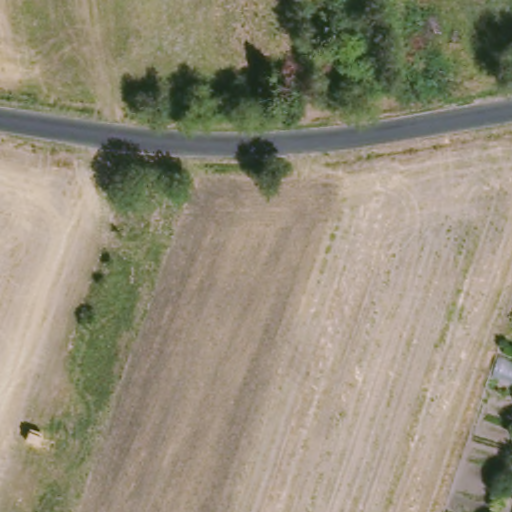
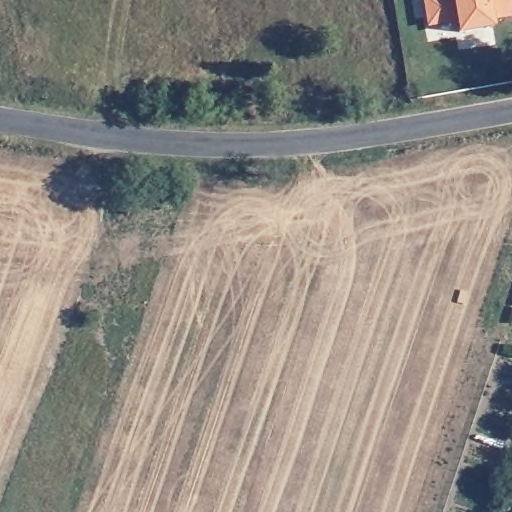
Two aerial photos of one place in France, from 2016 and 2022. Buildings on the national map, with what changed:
new [(493,21),(494,30),(458,34),(456,24),(426,26),(422,0),(510,0),(512,12),(512,18),(493,21)]

